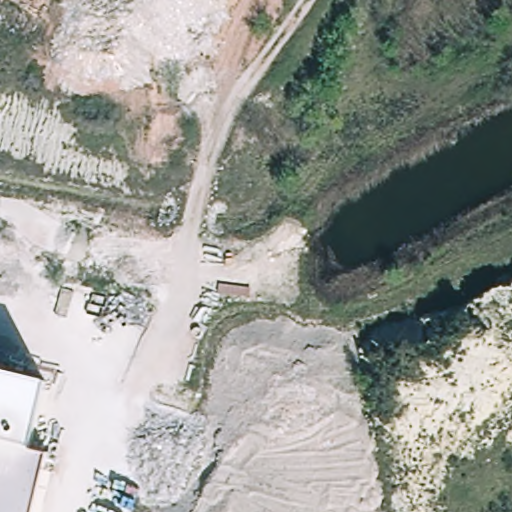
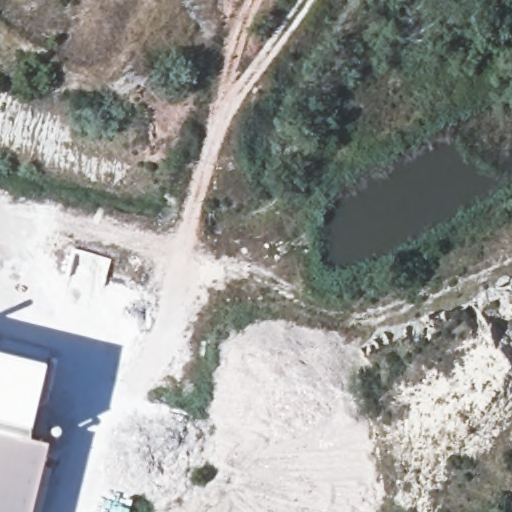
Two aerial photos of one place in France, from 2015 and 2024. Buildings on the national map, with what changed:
unchanged [(51,384),(33,455),(48,458),(35,512),(0,512),(0,372),(51,384)]

